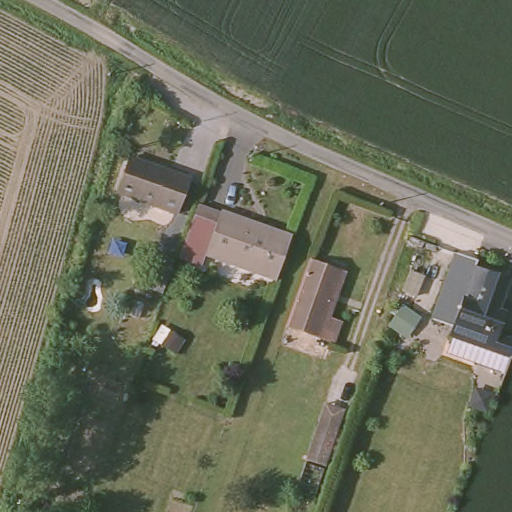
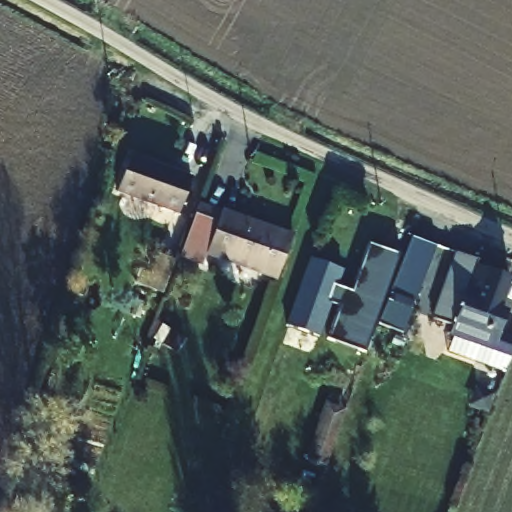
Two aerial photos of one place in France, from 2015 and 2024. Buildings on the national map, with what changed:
unchanged [(190,177),(177,211),(119,190),(131,156),(190,177)]
unchanged [(141,270),(147,255),(156,259),(162,242),(182,249),(198,202),(224,211),(225,206),(295,233),(280,276),(210,250),(205,265),(180,255),(170,282),(141,270)]
new [(411,240),(437,249),(403,330),(380,324),(411,240)]
unchanged [(510,363),(491,355),(497,338),(450,322),(454,314),(438,308),(461,242),(481,249),(480,257),(512,267),(512,276),(504,297),(510,300),(502,323),(512,327),(512,356),(510,363)]
new [(352,290),(369,244),(400,255),(365,351),(329,338),(340,307),(332,303),(338,286),(352,290)]
unchanged [(322,334),(292,323),(313,260),(344,271),(328,315),(340,320),(333,338),(322,334)]
unchanged [(307,455),(322,410),(325,399),(347,405),(343,417),(328,463),(307,455)]

